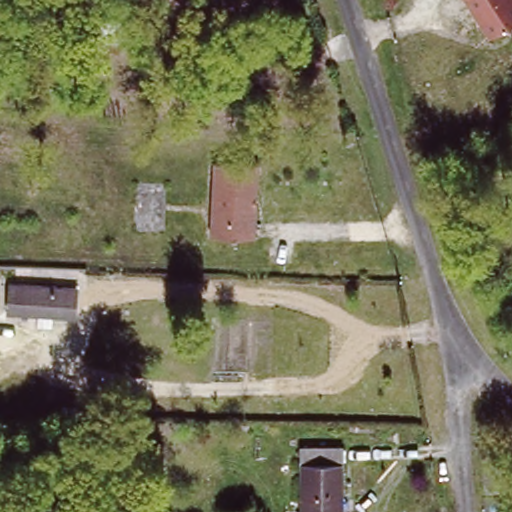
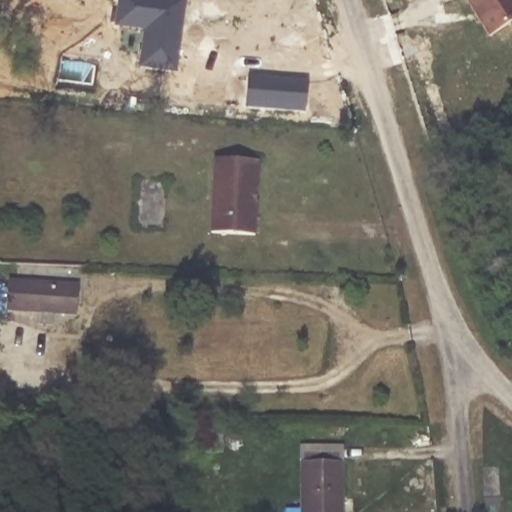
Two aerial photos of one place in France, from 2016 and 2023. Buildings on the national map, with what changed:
new [(119,0),(185,0),(175,66),(140,62),(145,25),(117,21),(119,0)]
unchanged [(489,33),(466,0),(512,0),(512,18),(489,33)]
new [(247,74),(307,79),(304,108),(244,103),(247,74)]
unchanged [(255,193),(255,202),(254,234),(210,232),(213,160),(257,163),(255,193)]
unchanged [(77,287),(75,315),(52,313),(52,325),(37,324),(37,312),(5,309),(6,281),(77,287)]
unchanged [(301,504),(302,447),(347,449),(344,512),(284,512),(284,504),(301,504)]

